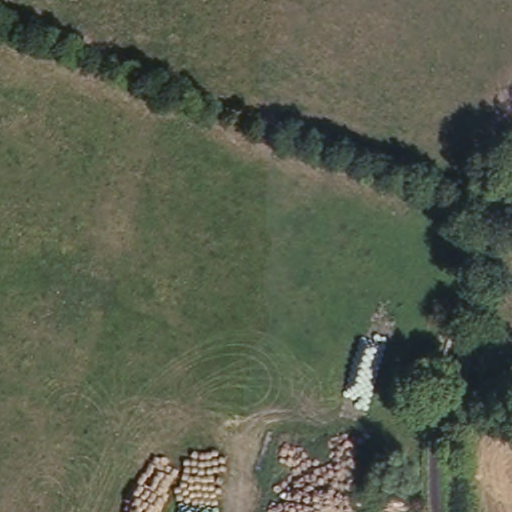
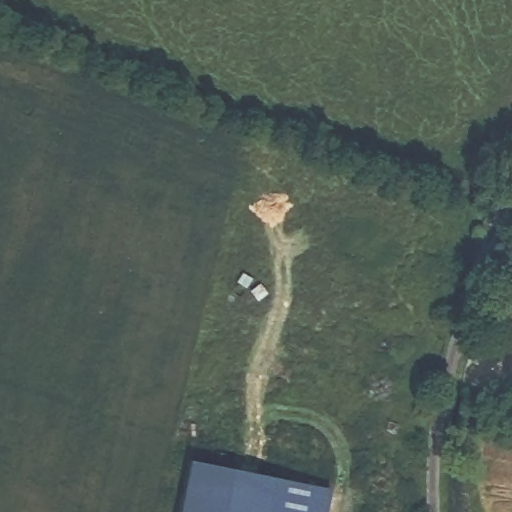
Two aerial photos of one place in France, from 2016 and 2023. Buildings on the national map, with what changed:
new [(330,484),(325,512),(180,512),(192,452),(330,484)]

